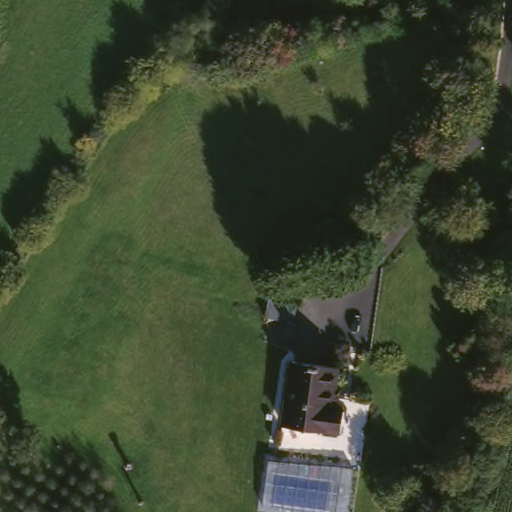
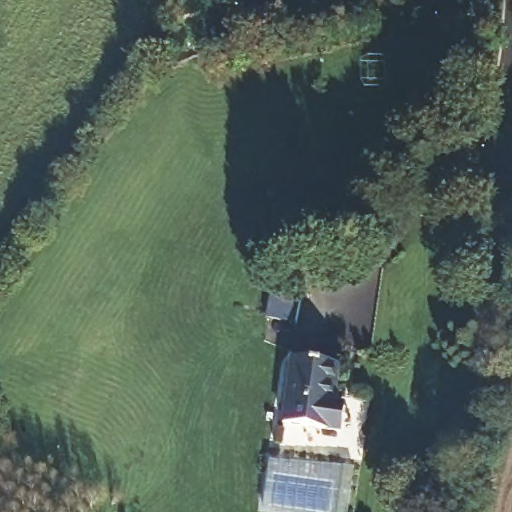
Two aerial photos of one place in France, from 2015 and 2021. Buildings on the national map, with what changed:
unchanged [(237,38),(235,24),(256,19),(260,32),(237,38)]
unchanged [(300,304),(295,324),(265,318),(270,297),(300,304)]
unchanged [(335,397),(339,398),(337,409),(343,410),(340,434),(283,426),(292,363),(338,369),(335,397)]

